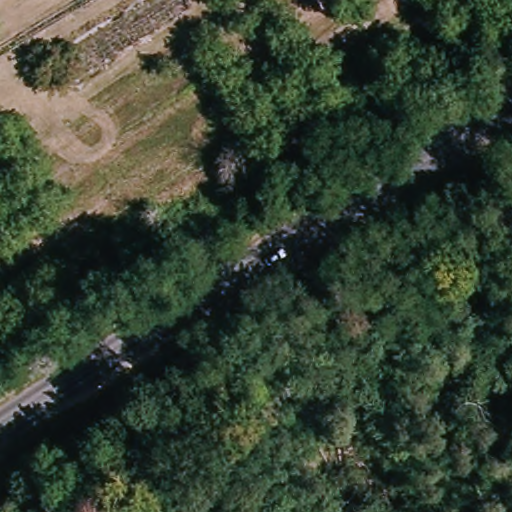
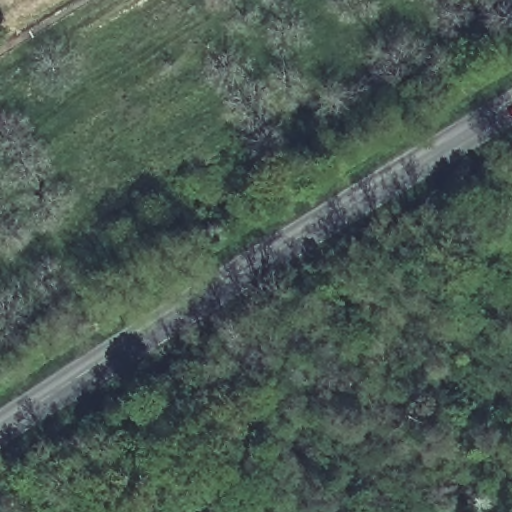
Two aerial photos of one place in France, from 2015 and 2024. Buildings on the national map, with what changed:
unchanged [(162,0),(182,0),(187,9),(62,85),(50,65),(162,0)]

